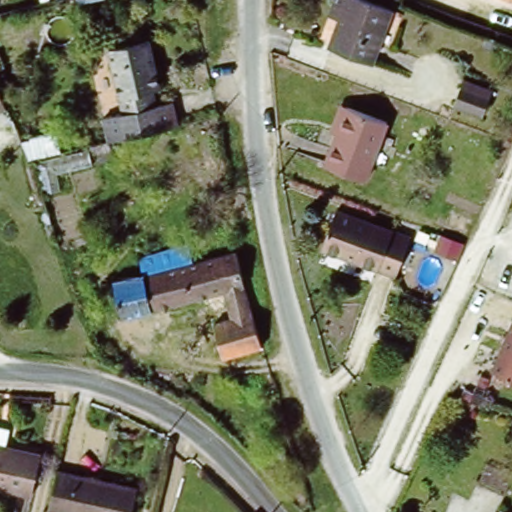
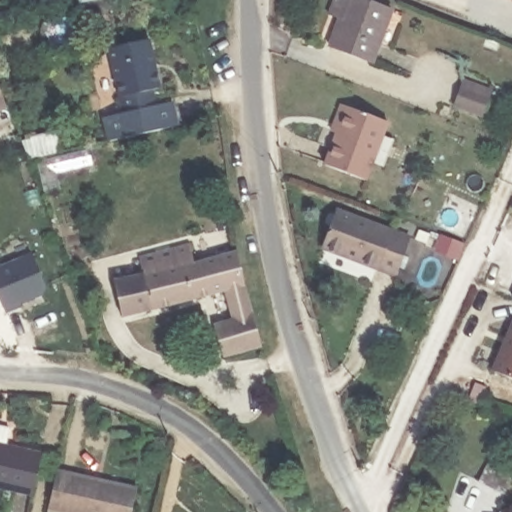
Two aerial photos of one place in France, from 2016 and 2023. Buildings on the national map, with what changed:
unchanged [(373,59),(337,44),(345,25),(336,21),(344,0),(374,0),(393,7),(373,59)]
unchanged [(512,0),(512,1),(510,0),(512,0)]
unchanged [(159,112),(175,109),(179,130),(114,143),(111,120),(128,117),(115,52),(153,45),(163,91),(156,93),(159,112)]
unchanged [(488,105),(482,120),(454,110),(461,94),(488,105)]
unchanged [(328,166),(338,140),(331,137),(343,107),(350,110),(389,125),(368,182),(328,166)]
unchanged [(409,231),(394,267),(338,245),(352,209),(409,231)]
unchanged [(221,357),(211,323),(230,318),(223,293),(149,310),(153,337),(126,341),(125,328),(126,328),(124,312),(118,313),(111,280),(144,273),(143,261),(145,258),(194,251),(196,264),(199,265),(238,257),(244,285),(261,350),(221,357)]
new [(51,291),(6,310),(0,296),(0,270),(36,256),(51,291)]
unchanged [(512,318),(512,377),(492,370),(511,318),(512,318)]
unchanged [(34,488),(0,482),(0,439),(43,447),(34,488)]
unchanged [(138,486),(132,512),(50,512),(60,470),(138,486)]

